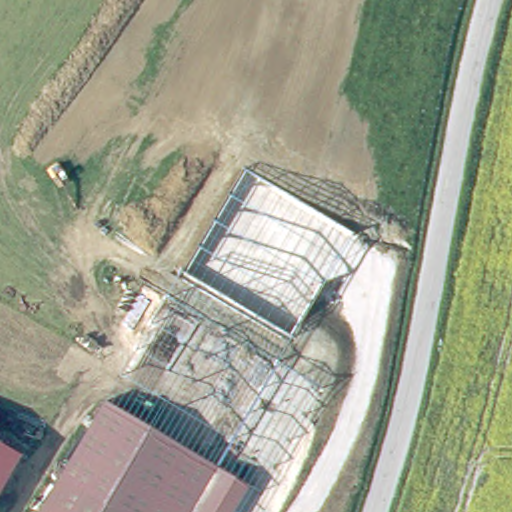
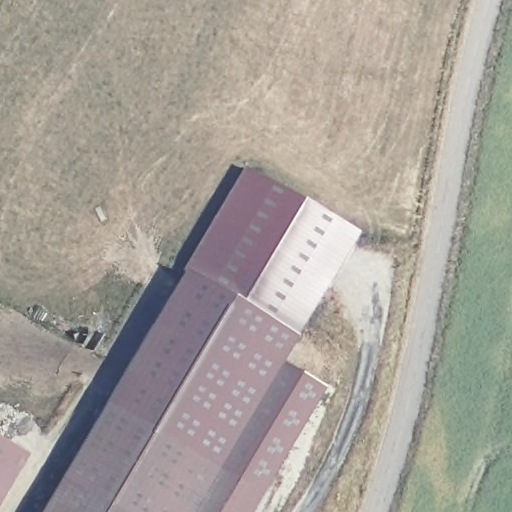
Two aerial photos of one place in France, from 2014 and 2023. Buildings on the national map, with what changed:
new [(356,232),(295,336),(184,271),(243,166),(356,232)]
new [(256,484),(111,398),(184,271),(295,336),(279,363),(323,389),(252,512),(239,512),(256,484)]
unchanged [(256,484),(239,512),(43,512),(111,398),(256,484)]
unchanged [(23,459),(0,501),(0,447),(23,459)]

